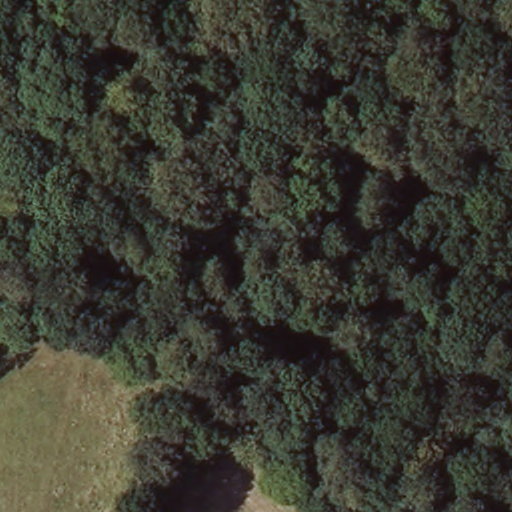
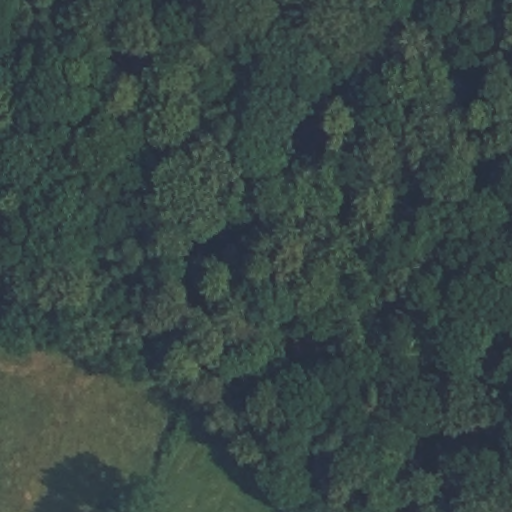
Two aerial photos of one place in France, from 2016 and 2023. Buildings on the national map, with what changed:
[]

